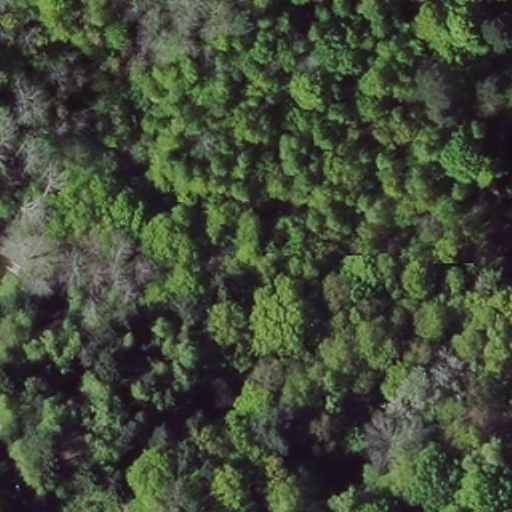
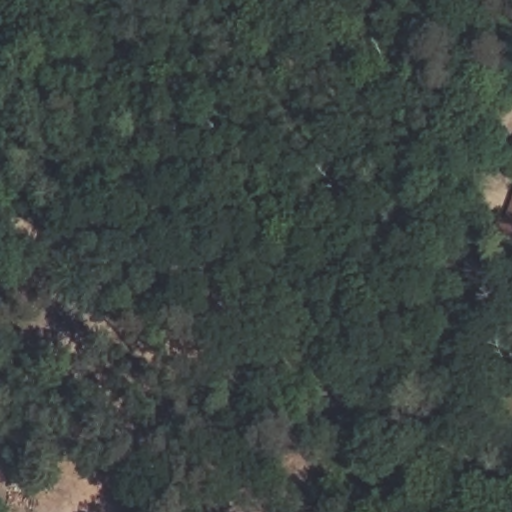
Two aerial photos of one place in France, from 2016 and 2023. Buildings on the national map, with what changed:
unchanged [(499,239),(512,200),(512,243),(499,239)]

